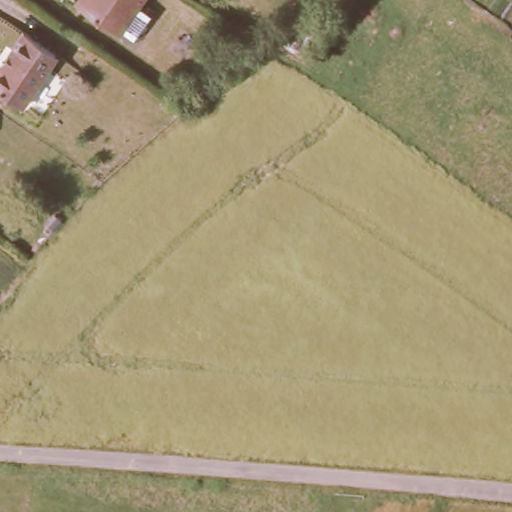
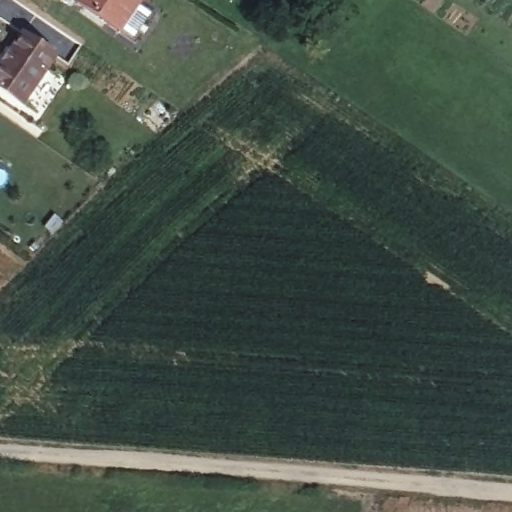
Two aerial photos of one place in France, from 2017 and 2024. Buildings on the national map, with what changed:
unchanged [(77,4),(81,0),(143,0),(120,32),(77,4)]
unchanged [(0,88),(0,77),(29,35),(61,57),(26,105),(0,88)]

